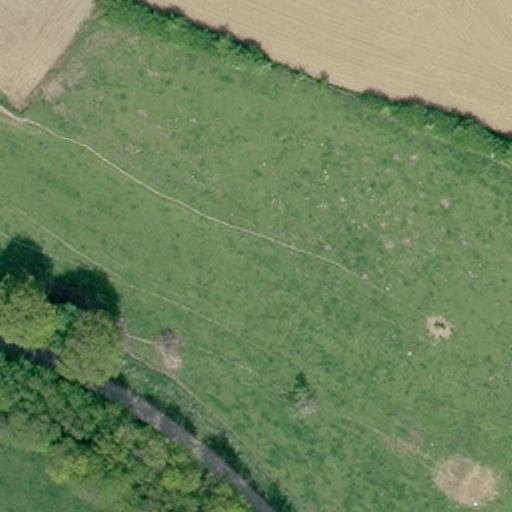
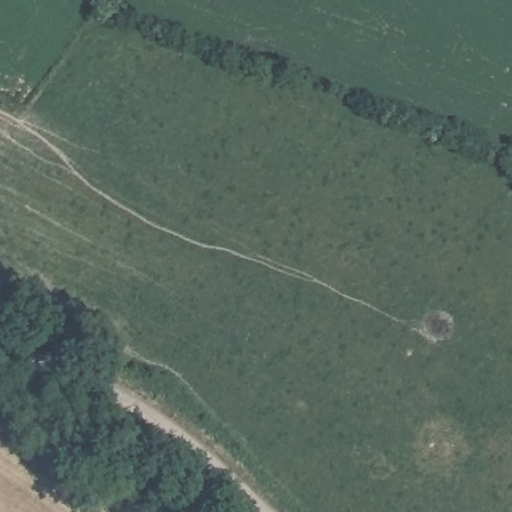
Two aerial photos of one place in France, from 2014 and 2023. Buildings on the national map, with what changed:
[]

